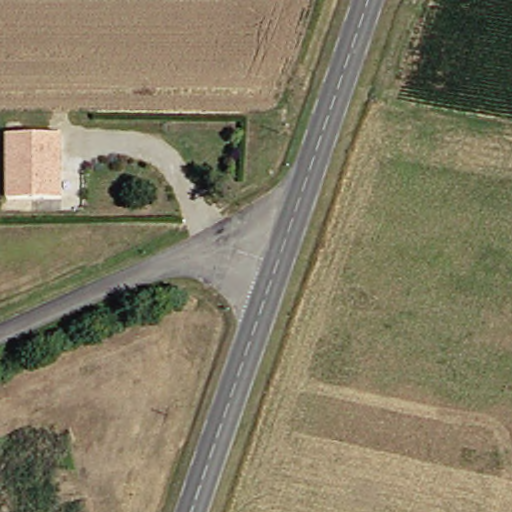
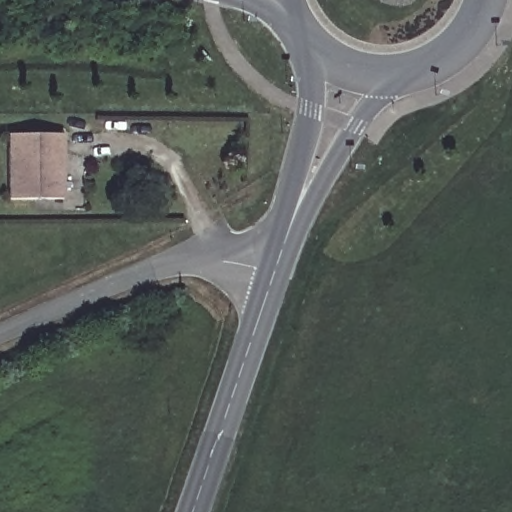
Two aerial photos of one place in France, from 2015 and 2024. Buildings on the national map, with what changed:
unchanged [(69,199),(12,200),(12,130),(68,130),(69,158),(69,176),(69,199)]

